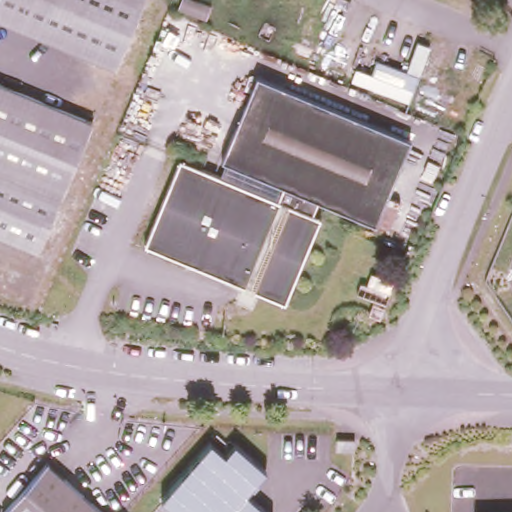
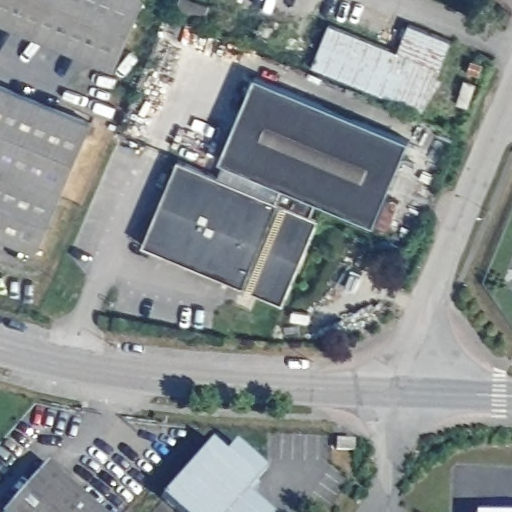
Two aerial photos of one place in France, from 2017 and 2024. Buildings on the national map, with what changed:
unchanged [(123,64),(0,13),(0,1),(1,0),(150,0),(123,64)]
new [(398,52),(409,24),(452,41),(424,112),(312,67),(330,25),(398,52)]
unchanged [(373,222),(315,197),(310,210),(319,215),(284,298),(143,240),(177,155),(271,194),(277,181),(219,156),(252,72),(407,137),(373,222)]
unchanged [(36,254),(0,239),(0,87),(91,125),(36,254)]
unchanged [(223,460),(233,448),(264,477),(244,499),(259,512),(169,512),(159,503),(209,447),(223,460)]
unchanged [(95,512),(2,512),(45,467),(95,512)]

